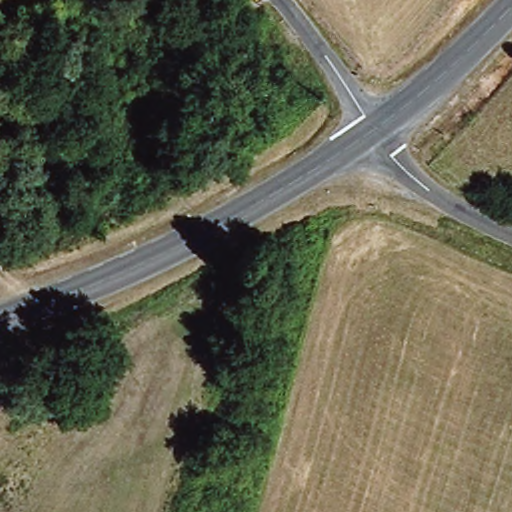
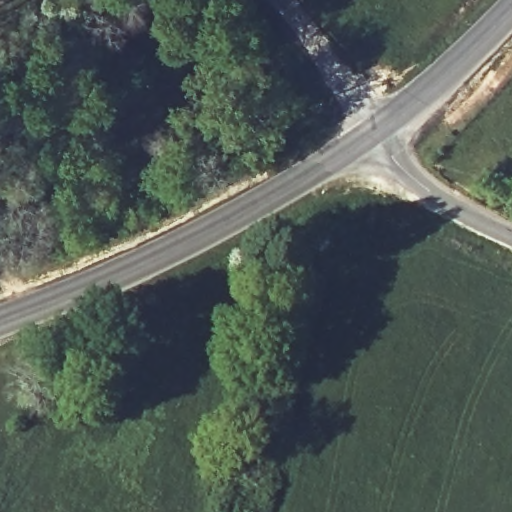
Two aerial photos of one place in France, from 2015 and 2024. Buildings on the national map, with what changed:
[]

